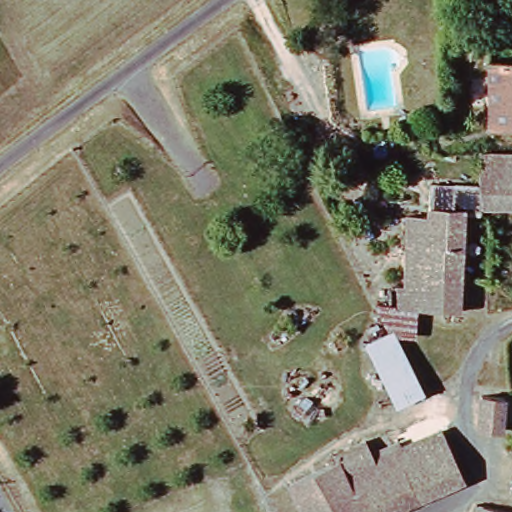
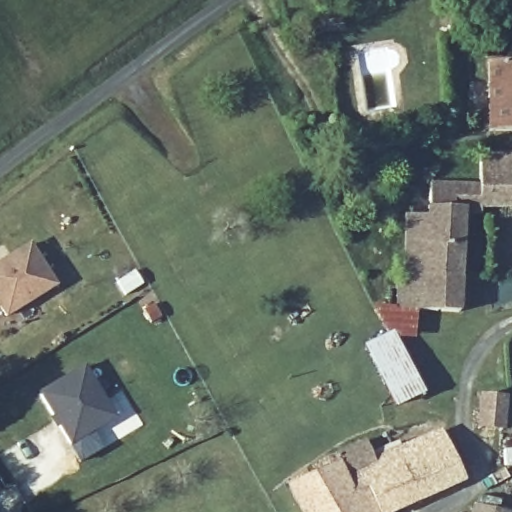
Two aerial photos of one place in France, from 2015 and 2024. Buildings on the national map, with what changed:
unchanged [(480,56),(482,17),(512,18),(512,57),(480,56)]
unchanged [(478,127),(480,56),(512,57),(512,127),(478,127)]
unchanged [(396,213),(423,214),(423,191),(422,180),(468,178),(475,178),(476,153),(512,154),(512,210),(461,212),(456,283),(400,282),(396,213)]
unchanged [(378,196),(395,195),(396,213),(380,213),(378,196)]
new [(4,262),(30,245),(55,286),(5,317),(0,307),(0,270),(2,268),(4,262)]
unchanged [(508,310),(503,274),(512,273),(512,309),(508,310)]
unchanged [(455,312),(382,311),(375,302),(383,300),(378,282),(400,282),(456,283),(455,312)]
unchanged [(406,384),(385,395),(356,335),(378,323),(405,382),(406,384)]
new [(84,367),(115,420),(71,447),(39,395),(84,367)]
unchanged [(473,433),(475,400),(497,399),(496,433),(473,433)]
unchanged [(331,465),(327,455),(360,442),(367,460),(428,436),(450,472),(454,481),(388,512),(294,512),(283,482),(331,465)]
unchanged [(510,504),(510,476),(512,476),(512,504),(510,504)]
unchanged [(509,511),(509,512),(475,512),(475,507),(509,511)]

